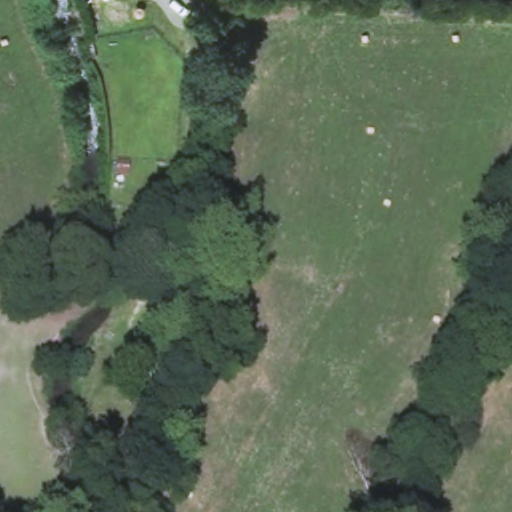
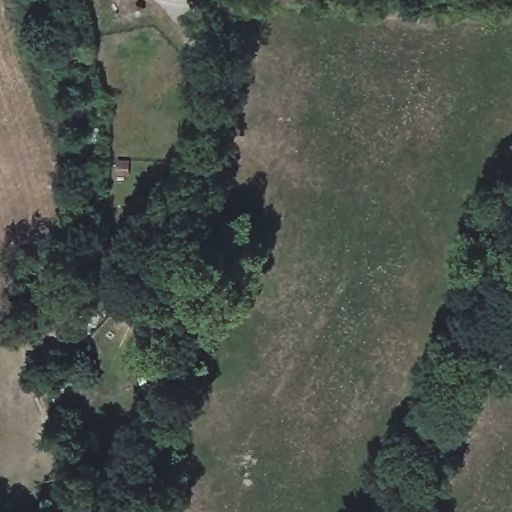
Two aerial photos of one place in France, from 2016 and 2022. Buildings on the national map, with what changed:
unchanged [(34,312),(0,306),(0,294),(3,280),(36,285),(34,312)]

